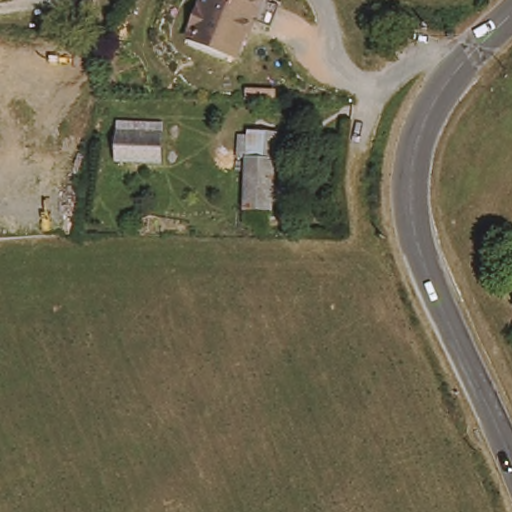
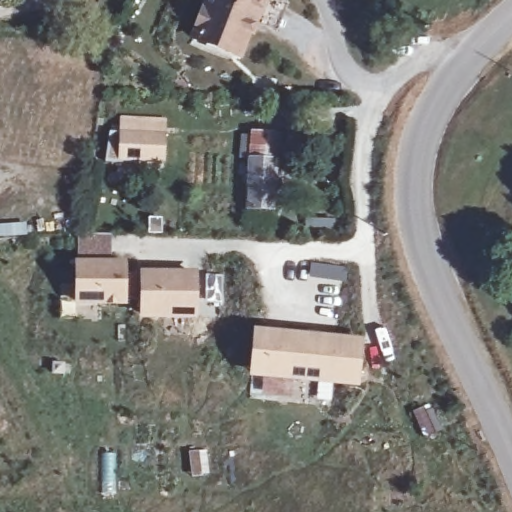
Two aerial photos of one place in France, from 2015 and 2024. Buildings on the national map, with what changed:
unchanged [(196,31),(208,0),(266,0),(257,25),(254,23),(241,57),(231,54),(193,39),(196,31)]
unchanged [(120,160),(121,134),(122,124),(163,125),(162,135),(162,160),(120,160)]
unchanged [(247,210),(250,158),(241,157),(243,135),(252,135),(252,132),(271,133),(281,134),(278,160),(275,210),(247,210)]
new [(125,302),(77,302),(77,263),(80,263),(78,235),(112,235),(111,263),(125,263),(125,275),(145,275),(195,275),(194,315),(144,315),(144,302),(125,297),(125,302)]
new [(357,383),(262,375),(253,374),(257,332),(266,333),(361,341),(357,383)]
new [(53,363),(64,363),(63,374),(52,374),(53,363)]

